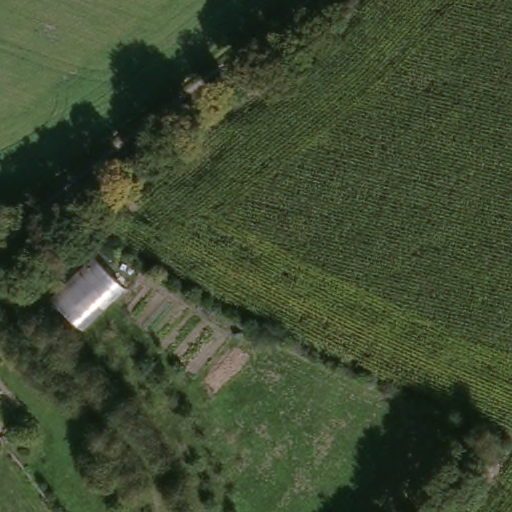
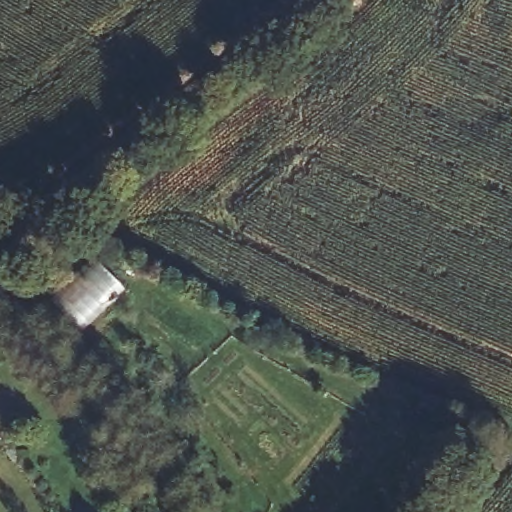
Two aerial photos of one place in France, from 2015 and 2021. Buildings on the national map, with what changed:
unchanged [(130,291),(89,330),(59,301),(104,261),(130,291)]
unchanged [(4,423),(0,426),(0,420),(4,423)]

